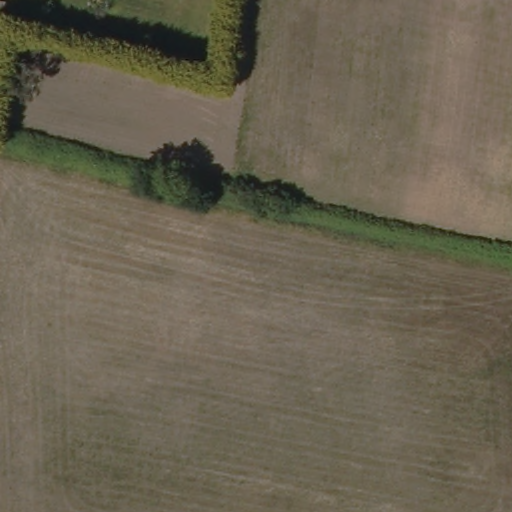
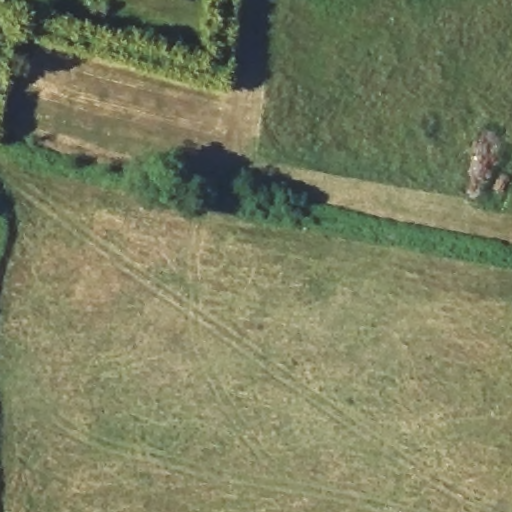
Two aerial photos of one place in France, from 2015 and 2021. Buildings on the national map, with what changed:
[]

